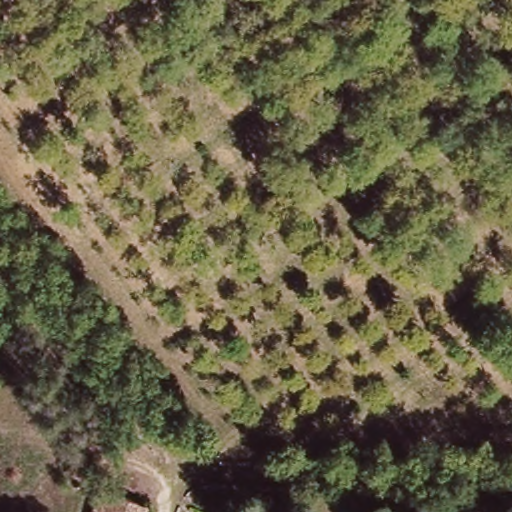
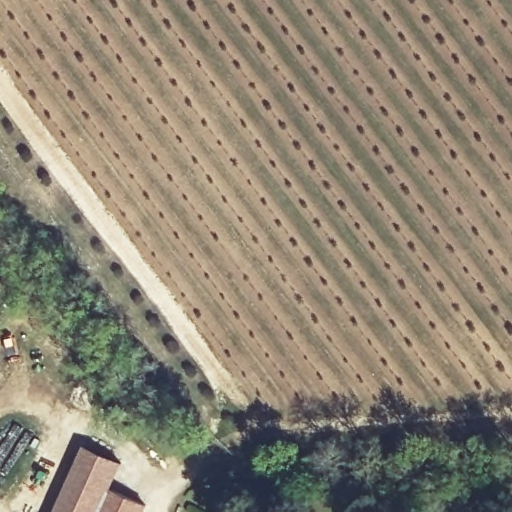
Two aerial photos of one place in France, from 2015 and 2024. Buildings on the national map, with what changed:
new [(148,505),(145,512),(54,512),(83,445),(123,463),(112,489),(148,505)]
demolished [(144,502),(141,512),(102,512),(108,490),(144,502)]

